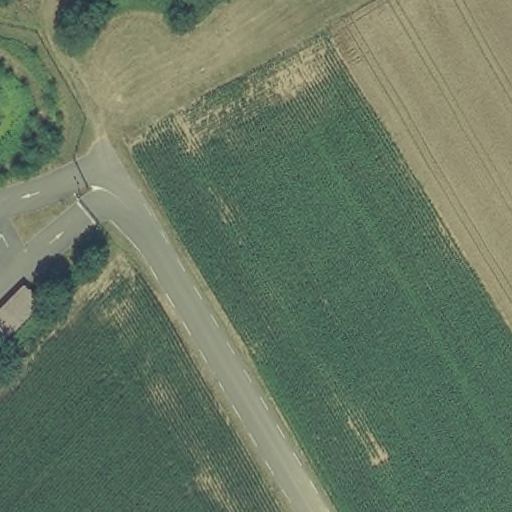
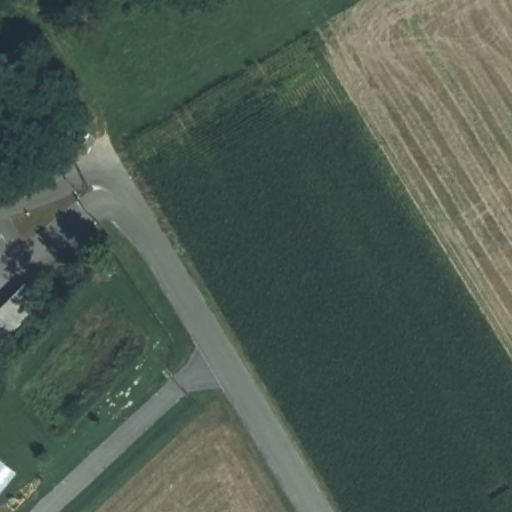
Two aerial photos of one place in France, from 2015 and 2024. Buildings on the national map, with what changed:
unchanged [(40,302),(0,346),(0,312),(27,285),(40,302)]

